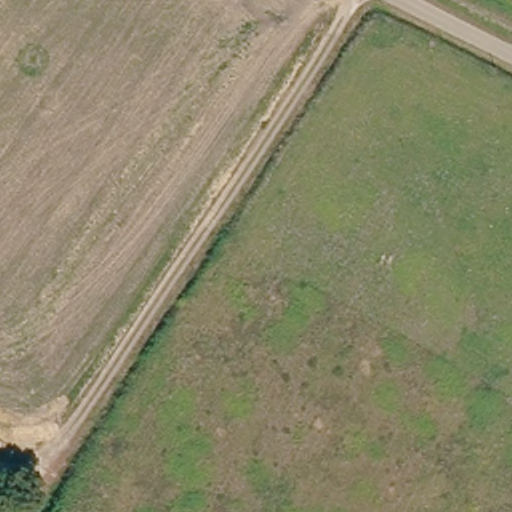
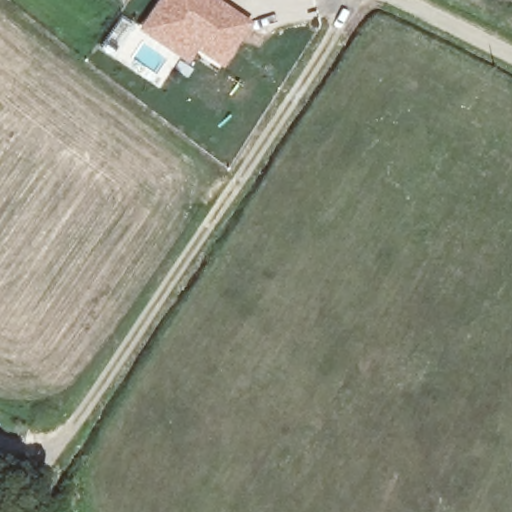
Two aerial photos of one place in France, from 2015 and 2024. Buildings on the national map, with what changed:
new [(223,70),(197,52),(189,65),(138,30),(159,0),(218,0),(253,24),(223,70)]
unchanged [(512,0),(512,1),(509,0),(512,0)]

